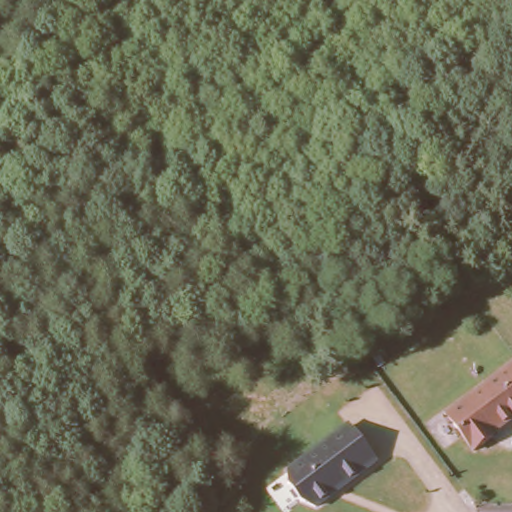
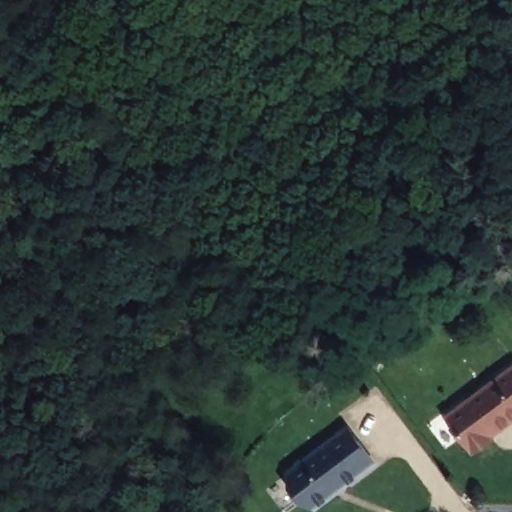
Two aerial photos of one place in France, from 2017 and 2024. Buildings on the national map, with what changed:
unchanged [(512,364),(512,426),(488,442),(490,445),(467,461),(442,418),(512,364)]
unchanged [(304,508),(288,483),(288,474),(349,428),(375,467),(316,512),(304,508)]

